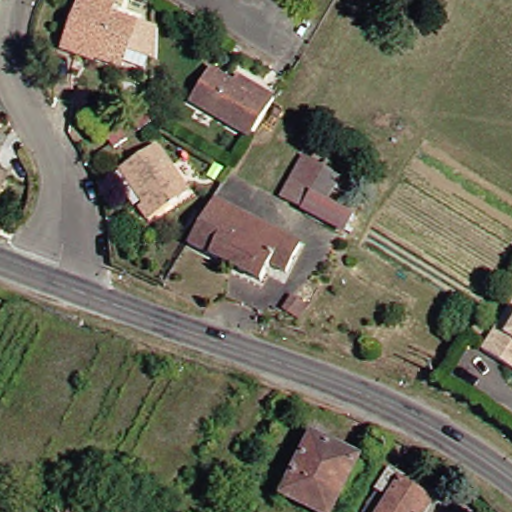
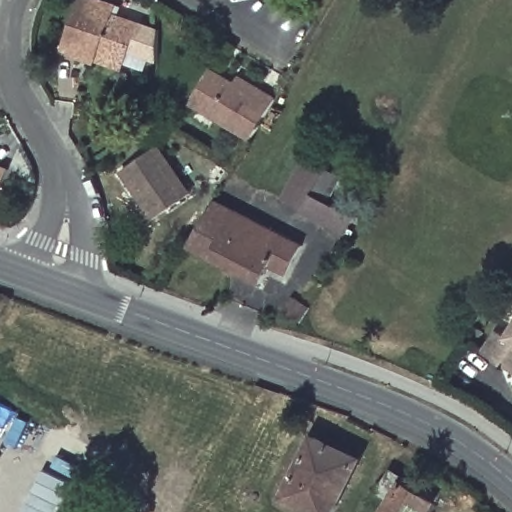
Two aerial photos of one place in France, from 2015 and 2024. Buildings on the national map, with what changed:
unchanged [(96,61),(94,66),(75,59),(60,52),(80,0),(91,0),(114,8),(111,17),(136,26),(164,32),(156,61),(126,54),(123,65),(120,71),(96,61)]
unchanged [(248,136),(188,101),(207,67),(231,82),(236,74),(257,87),(272,96),(248,136)]
unchanged [(118,132),(126,144),(115,151),(113,152),(106,141),(118,132)]
unchanged [(145,224),(136,211),(140,208),(116,173),(152,149),(185,197),(145,224)]
unchanged [(343,215),(335,230),(279,200),(299,159),(330,175),(317,201),(343,215)]
unchanged [(0,179),(0,170),(4,171),(0,179)]
unchanged [(211,203),(297,248),(282,277),(265,267),(255,286),(184,247),(211,203)]
unchanged [(306,310),(297,323),(280,312),(287,298),(306,310)]
unchanged [(479,353),(492,332),(502,337),(512,321),(512,373),(479,353)]
unchanged [(310,433),(330,442),(356,456),(353,462),(328,512),(313,512),(280,495),(310,433)]
unchanged [(409,501),(423,510),(421,512),(362,512),(370,498),(368,497),(381,477),(395,487),(411,497),(409,501)]

